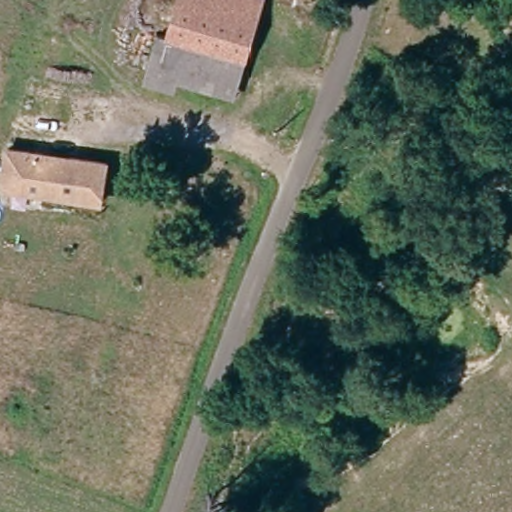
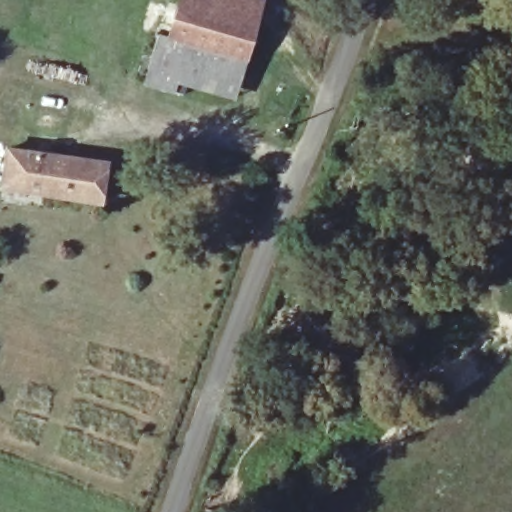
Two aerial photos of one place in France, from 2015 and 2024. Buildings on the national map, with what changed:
unchanged [(265,2),(235,98),(172,78),(169,87),(146,80),(161,31),(167,33),(178,0),(260,0),(265,2)]
unchanged [(105,165),(99,202),(7,185),(14,148),(105,165)]

